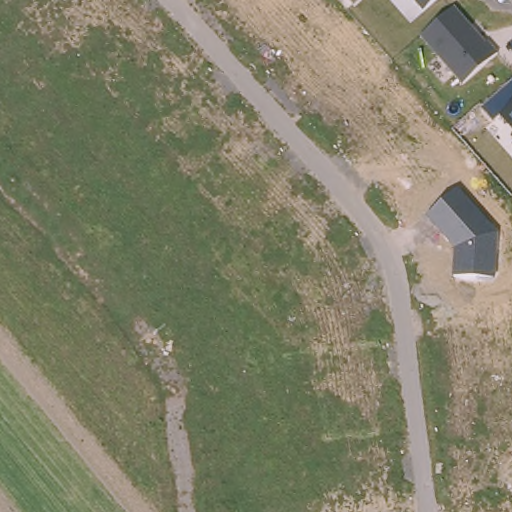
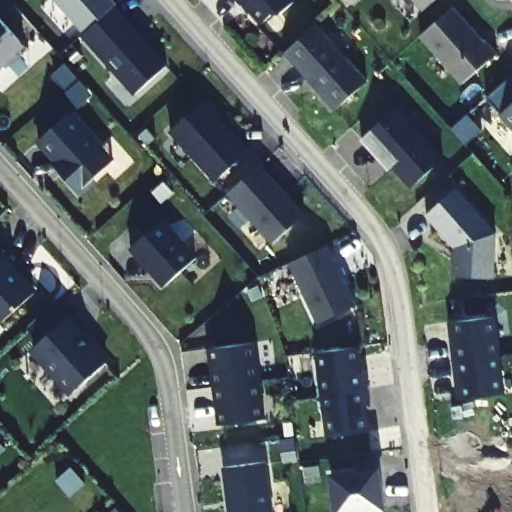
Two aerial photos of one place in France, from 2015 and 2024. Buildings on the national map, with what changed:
new [(115,6),(85,32),(56,0),(114,0),(117,3),(115,6)]
new [(274,12),(262,22),(244,2),(241,5),(236,0),(295,0),(281,13),(274,12)]
unchanged [(413,0),(435,0),(423,11),(413,0)]
new [(85,32),(115,6),(167,65),(135,93),(82,34),(85,32)]
unchanged [(488,42),(498,54),(462,84),(422,37),(455,7),(486,42),(488,42)]
new [(25,45),(18,52),(20,54),(9,64),(4,64),(0,68),(0,17),(25,45)]
new [(317,24),(367,80),(335,108),(285,52),(317,24)]
unchanged [(493,123),(481,108),(512,81),(512,129),(500,115),(493,123)]
new [(205,99),(218,114),(218,118),(224,124),(225,122),(250,150),(216,180),(171,130),(205,99)]
new [(397,106),(444,158),(412,186),(377,146),(372,150),(362,138),(397,106)]
new [(70,111),(114,160),(79,191),(57,166),(62,161),(52,150),(50,152),(39,139),(70,111)]
new [(260,164),(305,214),(273,242),(229,192),(260,164)]
unchanged [(452,276),(454,248),(425,217),(457,187),(497,233),(495,278),(452,276)]
new [(162,218),(197,257),(165,285),(131,247),(162,218)]
new [(328,243),(357,304),(318,322),(289,262),(328,243)]
new [(15,266),(12,268),(35,292),(1,322),(0,321),(0,249),(15,266)]
new [(457,342),(454,320),(495,315),(505,392),(464,397),(461,376),(456,376),(452,342),(457,342)]
new [(67,317),(82,334),(80,336),(87,345),(91,342),(108,361),(74,392),(33,347),(67,317)]
new [(224,422),(222,401),(216,402),(212,370),(217,369),(215,346),(255,341),(265,417),(224,422)]
unchanged [(358,345),(361,370),(366,369),(369,387),(322,392),(317,350),(358,345)]
unchanged [(369,387),(370,403),(365,404),(369,429),(328,435),(322,392),(369,387)]
new [(225,467),(266,462),(274,512),(231,512),(225,467)]
new [(337,511),(333,483),(332,472),(379,465),(380,476),(385,505),(337,511)]

